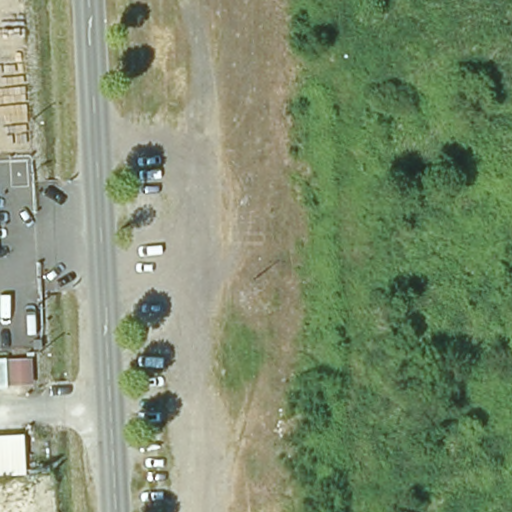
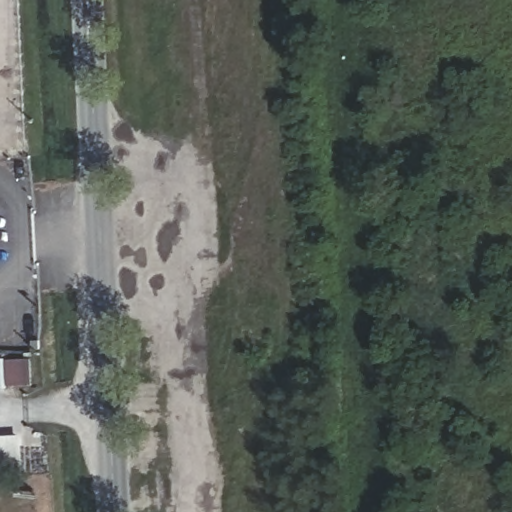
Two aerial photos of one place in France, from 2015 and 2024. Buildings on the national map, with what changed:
unchanged [(24,476),(0,477),(0,437),(21,436),(24,476)]

